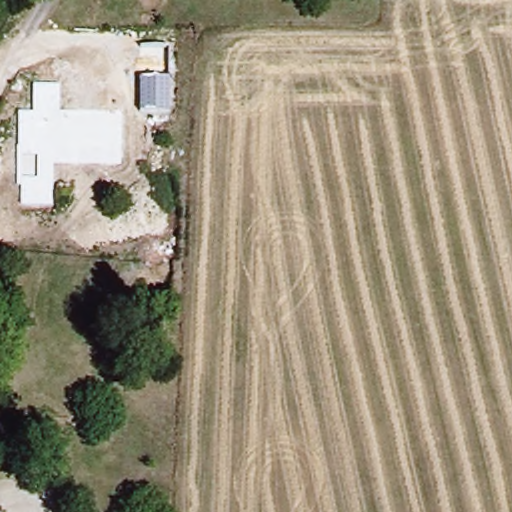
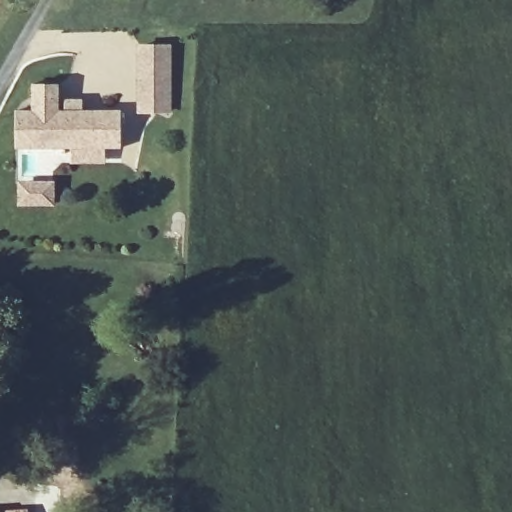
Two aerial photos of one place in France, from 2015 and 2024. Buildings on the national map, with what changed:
new [(174,43),(174,111),(138,112),(137,43),(174,43)]
new [(16,111),(33,111),(33,84),(59,85),(59,111),(65,111),(65,100),(82,100),(83,111),(121,111),(121,147),(105,148),(105,163),(71,163),(71,147),(16,148),(16,111)]
demolished [(13,143),(13,108),(132,110),(134,142),(13,143)]
new [(55,181),(55,205),(19,206),(19,181),(55,181)]

